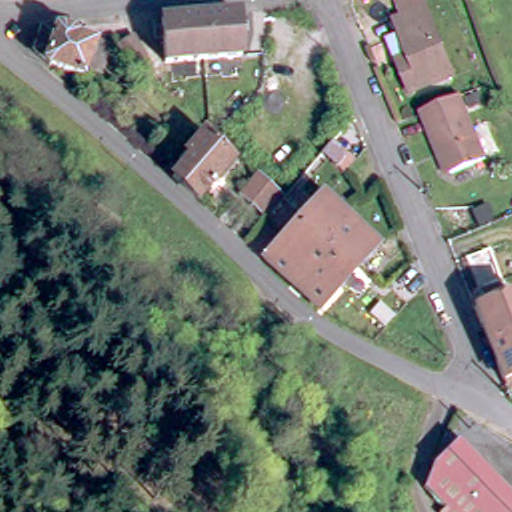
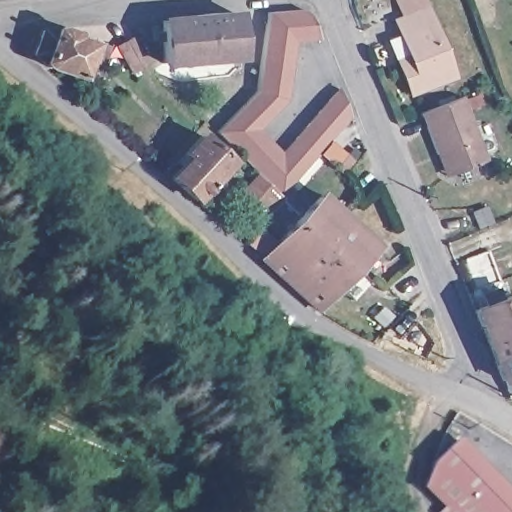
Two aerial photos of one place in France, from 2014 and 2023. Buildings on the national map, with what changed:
unchanged [(427,0),(455,67),(412,85),(391,34),(403,29),(397,12),(401,10),(397,0),(427,0)]
new [(310,12),(321,39),(296,41),(288,100),(260,130),(282,151),(340,86),(352,115),(285,195),(217,131),(258,90),(266,11),(305,8),(310,12)]
unchanged [(197,19),(235,15),(238,58),(202,61),(197,19)]
unchanged [(161,65),(158,21),(197,19),(202,61),(161,65)]
unchanged [(67,40),(82,45),(85,39),(100,45),(88,75),(71,69),(68,78),(39,67),(25,55),(33,31),(56,30),(67,36),(67,40)]
unchanged [(137,56),(126,65),(107,42),(122,32),(137,56)]
unchanged [(437,143),(427,116),(467,101),(486,149),(452,162),(446,165),(437,143)]
unchanged [(183,155),(200,134),(228,160),(195,199),(170,177),(187,157),(183,155)]
unchanged [(250,204),(240,195),(258,175),(267,184),(282,199),(265,218),(250,204)]
unchanged [(372,249),(317,309),(261,259),(320,198),(372,249)]
unchanged [(125,256),(98,271),(85,249),(112,234),(125,256)]
unchanged [(486,338),(472,305),(480,301),(477,292),(494,285),(497,294),(512,288),(512,328),(486,338)]
unchanged [(506,387),(486,338),(512,328),(512,385),(506,387)]
unchanged [(451,504),(428,481),(435,462),(458,440),(512,494),(512,512),(443,512),(451,504)]

